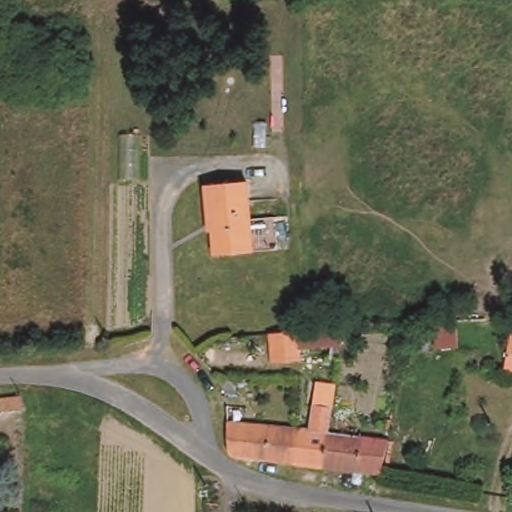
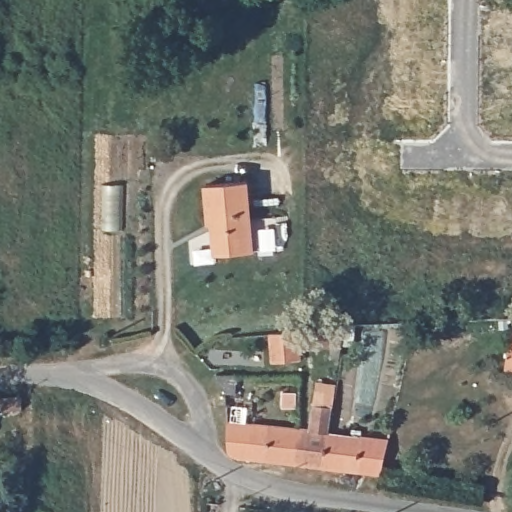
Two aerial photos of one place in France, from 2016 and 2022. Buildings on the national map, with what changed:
unchanged [(246,182),(249,219),(252,250),(215,252),(213,222),(207,222),(204,185),(246,182)]
unchanged [(299,334),(314,332),(343,331),(340,351),(339,360),(332,361),(331,351),(301,353),(301,365),(269,367),(267,337),(299,334)]
unchanged [(510,334),(512,334),(512,372),(503,370),(510,334)]
unchanged [(238,375),(238,394),(223,394),(216,375),(238,375)]
unchanged [(305,427),(311,390),(333,393),(330,413),(328,430),(325,467),(296,464),(297,427),(305,427)]
unchanged [(297,427),(296,464),(248,459),(228,455),(227,419),(297,427)]
unchanged [(387,442),(380,477),(325,467),(328,430),(387,442)]

